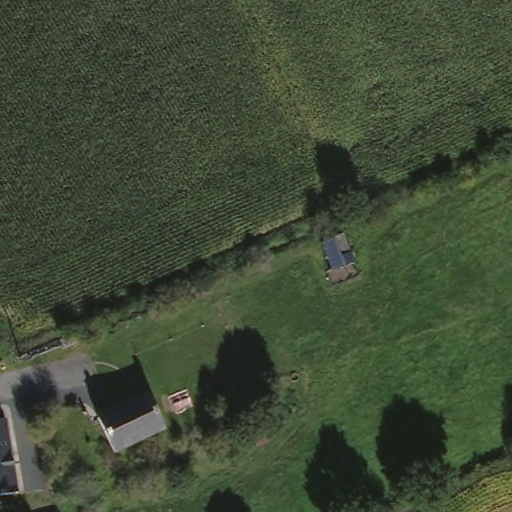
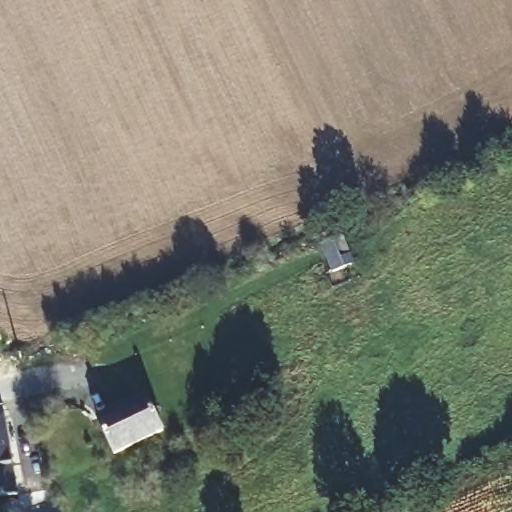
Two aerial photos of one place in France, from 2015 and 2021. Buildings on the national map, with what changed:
unchanged [(344,255),(354,283),(343,287),(333,259),(344,255)]
unchanged [(116,449),(100,414),(152,389),(169,425),(116,449)]
unchanged [(0,419),(12,417),(23,491),(14,492),(4,493),(0,494),(0,419)]

